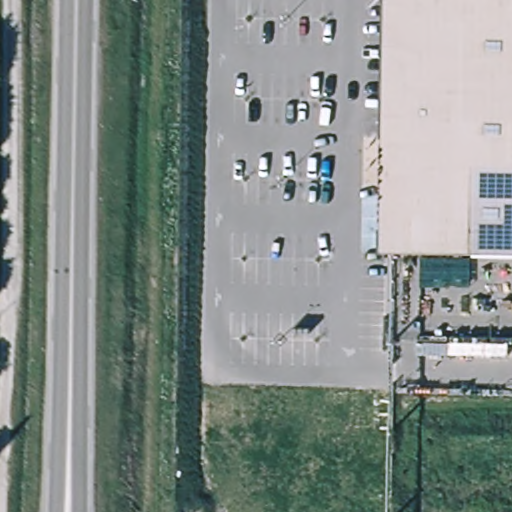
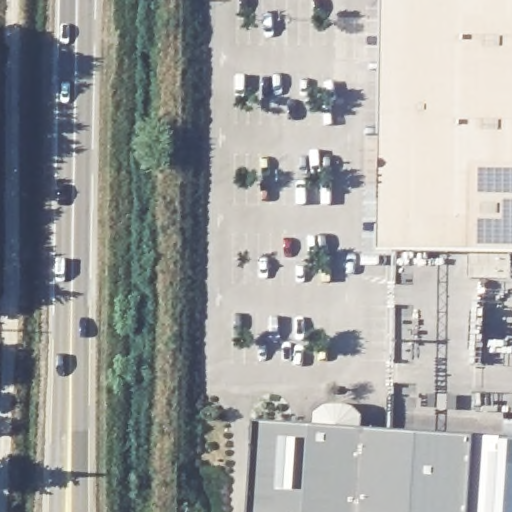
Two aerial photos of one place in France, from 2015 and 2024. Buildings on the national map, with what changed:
new [(422,136),(421,169),(420,252),(382,252),(385,0),(403,0),(400,136),(422,136)]
unchanged [(400,136),(403,0),(512,0),(512,170),(421,169),(422,136),(400,136)]
unchanged [(512,253),(420,252),(421,169),(512,170),(512,253)]
new [(468,512),(249,512),(255,423),(314,427),(314,413),(324,405),(345,404),(354,407),(362,417),(362,430),(472,438),(468,512)]
new [(472,438),(512,440),(512,512),(468,512),(472,438)]

